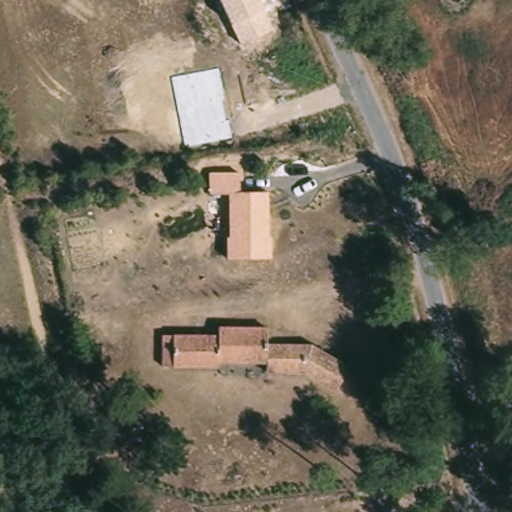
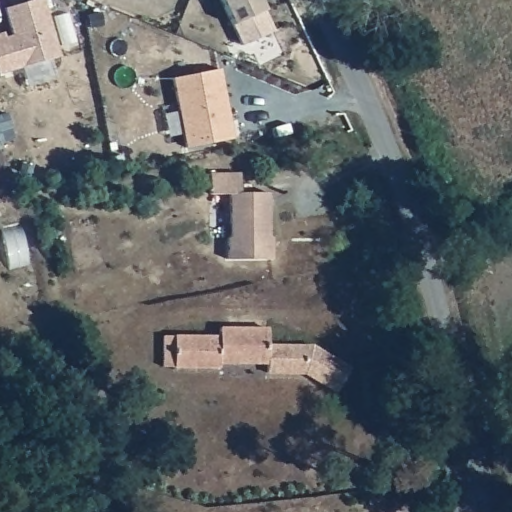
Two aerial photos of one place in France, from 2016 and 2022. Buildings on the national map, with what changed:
new [(5,39),(13,36),(4,5),(21,0),(43,0),(59,52),(0,71),(0,31),(3,30),(5,39)]
unchanged [(230,22),(220,0),(257,0),(262,10),(272,28),(239,43),(230,22)]
new [(220,64),(227,94),(225,95),(229,115),(232,114),(235,131),(189,142),(174,74),(220,64)]
unchanged [(227,260),(226,236),(233,236),(231,192),(209,194),(209,174),(240,172),(240,193),(265,192),(267,258),(227,260)]
unchanged [(221,337),(219,329),(269,331),(268,346),(317,345),(360,375),(342,398),(312,377),(266,379),(266,368),(224,368),(223,375),(166,373),(164,336),(221,337)]

